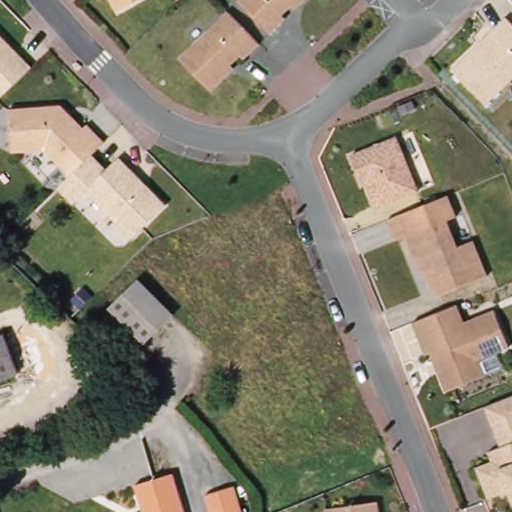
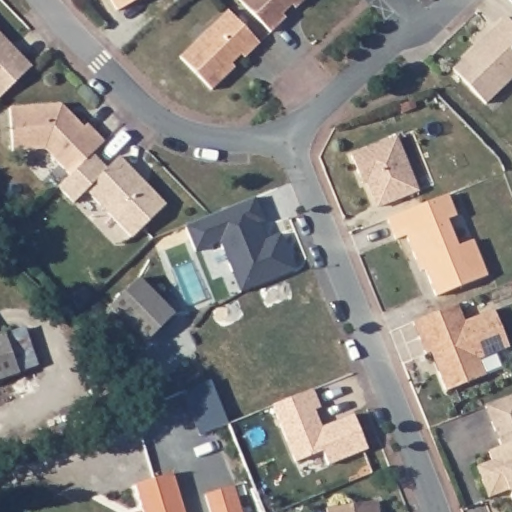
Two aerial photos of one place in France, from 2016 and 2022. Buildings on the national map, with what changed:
unchanged [(116,11),(110,0),(136,0),(116,11)]
unchanged [(281,14),(284,18),(269,33),(238,0),(239,0),(303,0),(299,4),(294,9),(290,5),(281,14)]
unchanged [(210,90),(179,58),(227,11),(236,21),(259,43),(243,58),(240,55),(230,64),(234,68),(228,73),(210,90)]
unchanged [(512,24),(512,80),(486,105),(452,70),(479,44),(494,30),(506,18),(512,24)]
unchanged [(0,36),(15,51),(30,67),(0,97),(0,36)]
unchanged [(92,153),(91,154),(69,176),(43,149),(11,151),(8,108),(61,105),(83,128),(86,124),(103,142),(92,153)]
unchanged [(350,156),(396,138),(417,191),(377,207),(366,181),(361,183),(358,174),(350,156)]
unchanged [(84,190),(85,191),(73,203),(57,187),(67,177),(69,176),(91,154),(106,169),(84,190)]
unchanged [(118,157),(165,205),(131,239),(85,191),(84,190),(106,169),(118,157)]
unchanged [(402,213),(447,195),(456,216),(447,220),(457,246),(473,240),(487,276),(435,297),(420,258),(415,260),(406,236),(395,240),(387,219),(402,213)]
new [(232,272),(219,242),(195,252),(184,226),(255,198),(264,220),(258,223),(265,240),(280,234),(295,271),(253,287),(240,293),(232,272)]
unchanged [(155,326),(120,289),(135,276),(169,312),(155,326)]
unchanged [(155,326),(140,339),(106,303),(120,289),(155,326)]
unchanged [(425,354),(412,322),(435,313),(457,304),(464,323),(494,311),(509,348),(479,360),(485,375),(446,391),(438,372),(430,352),(425,354)]
unchanged [(0,380),(0,332),(2,331),(18,373),(0,380)]
new [(313,392),(320,411),(315,413),(322,431),(354,418),(368,452),(329,468),(323,454),(296,465),(273,409),(313,392)]
unchanged [(509,493),(488,499),(476,465),(490,460),(487,450),(500,445),(484,408),(512,397),(512,500),(509,493)]
unchanged [(172,473),(184,512),(143,512),(134,485),(172,473)]
unchanged [(210,512),(205,495),(234,486),(242,512),(210,512)]
unchanged [(379,512),(327,512),(327,508),(378,501),(379,512)]

